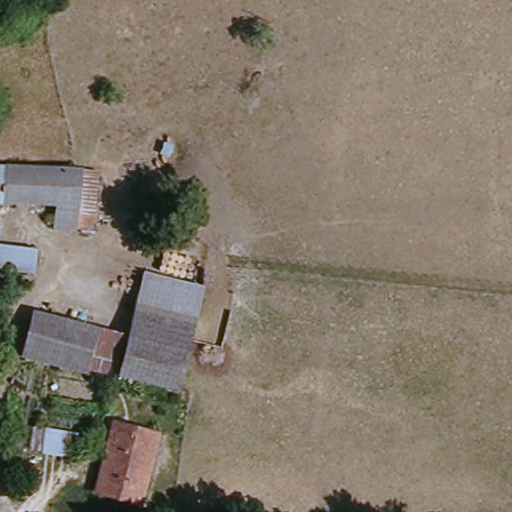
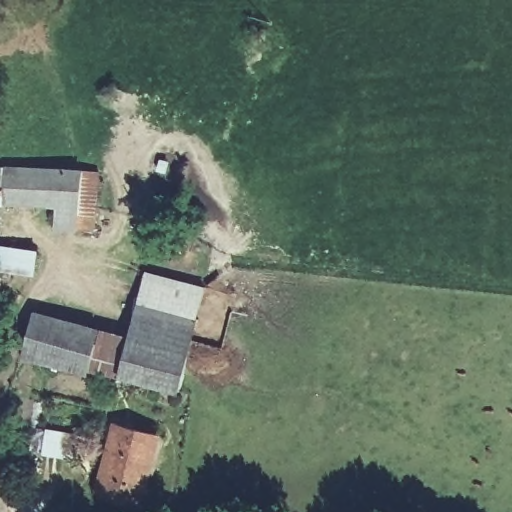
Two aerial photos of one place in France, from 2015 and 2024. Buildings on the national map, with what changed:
unchanged [(99,184),(98,187),(95,232),(58,229),(59,210),(0,206),(0,167),(87,169),(100,170),(99,184)]
unchanged [(0,250),(27,252),(26,275),(0,270),(0,250)]
unchanged [(147,270),(208,286),(182,390),(122,375),(130,332),(147,270)]
unchanged [(39,311),(74,320),(102,326),(93,369),(27,353),(39,311)]
unchanged [(130,332),(122,375),(115,373),(93,369),(102,326),(130,332)]
unchanged [(158,440),(140,505),(99,494),(117,428),(158,440)]

